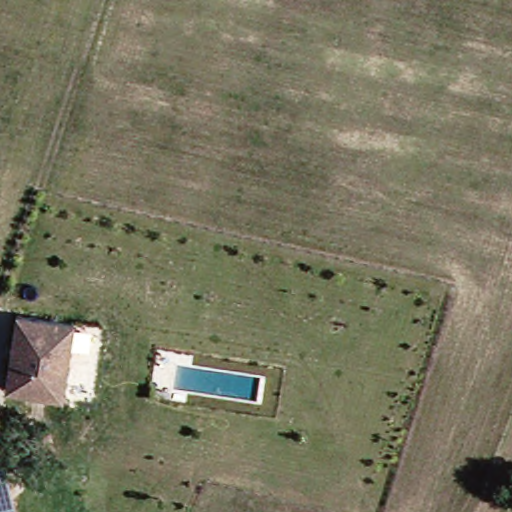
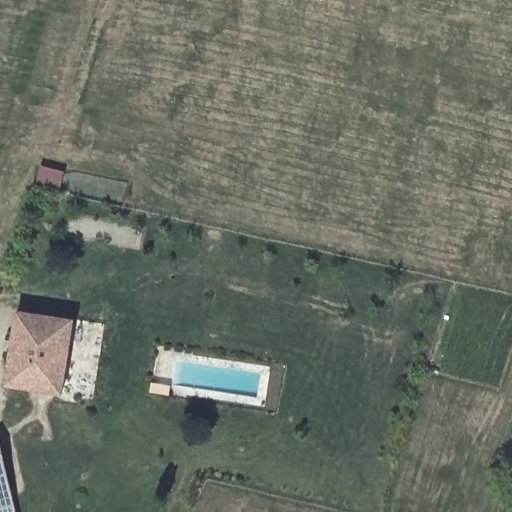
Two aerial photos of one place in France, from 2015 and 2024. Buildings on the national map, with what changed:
unchanged [(13,308),(18,309),(73,318),(60,399),(1,386),(10,325),(13,308)]
unchanged [(9,508),(4,509),(0,509),(0,466),(9,508)]
unchanged [(4,509),(5,512),(0,512),(0,509),(4,509)]

